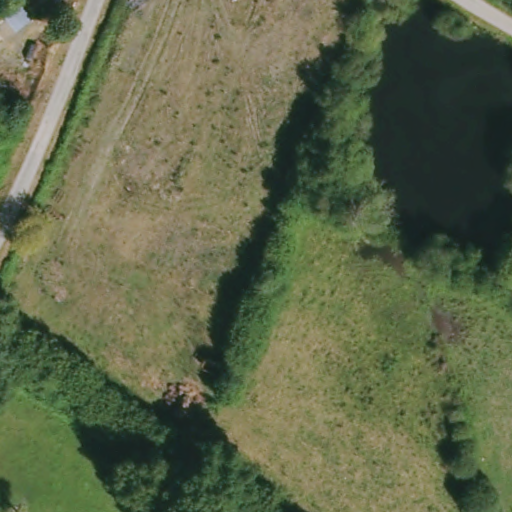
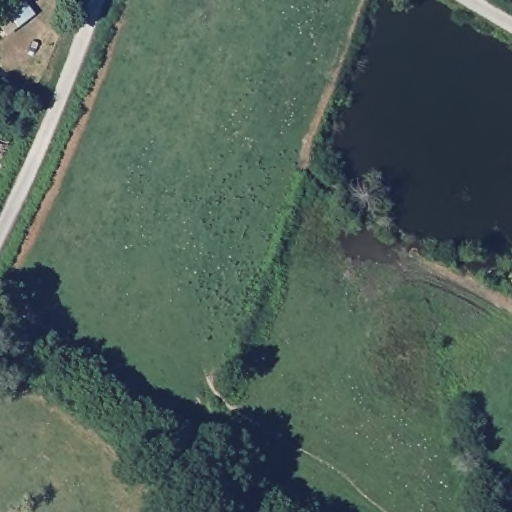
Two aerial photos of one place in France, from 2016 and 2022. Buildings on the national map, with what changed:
unchanged [(23,15),(0,29),(0,11),(16,2),(23,15)]

